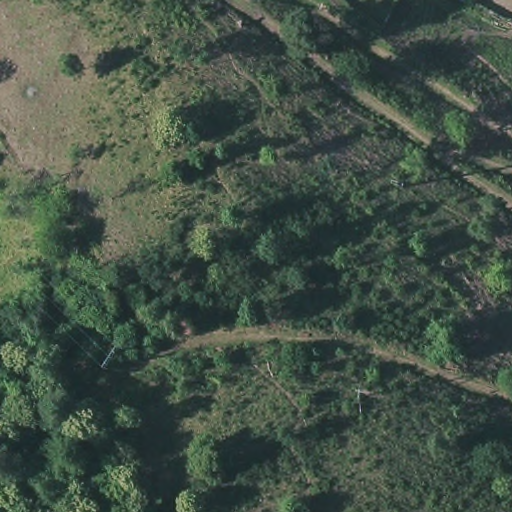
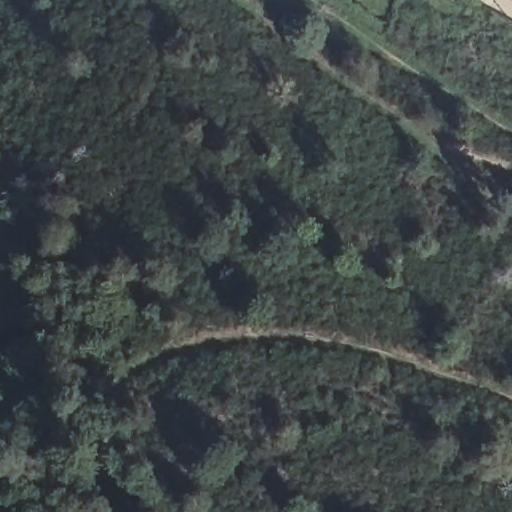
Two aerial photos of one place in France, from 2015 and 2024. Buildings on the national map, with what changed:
[]

